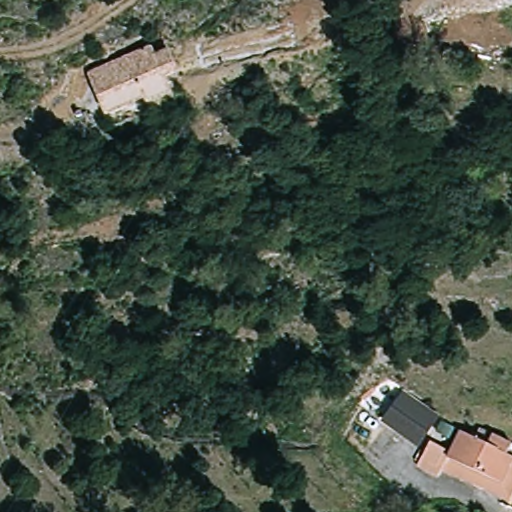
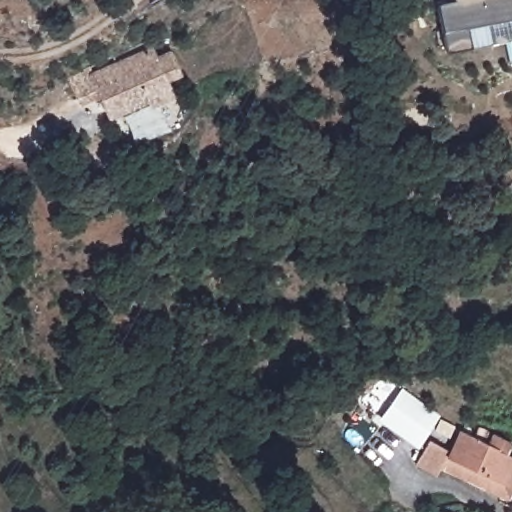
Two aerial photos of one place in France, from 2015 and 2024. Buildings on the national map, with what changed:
new [(446,51),(443,28),(438,2),(452,0),(512,0),(512,39),(469,47),(446,51)]
unchanged [(153,60),(167,54),(174,68),(178,76),(169,80),(163,82),(170,97),(147,107),(144,102),(106,120),(94,93),(87,77),(149,50),(153,60)]
unchanged [(426,402),(442,413),(421,446),(381,418),(390,407),(404,387),(426,402)]
unchanged [(432,439),(441,444),(453,450),(463,431),(473,435),(477,437),(481,430),(509,445),(507,450),(506,452),(512,456),(512,494),(508,501),(495,494),(443,467),(441,471),(439,473),(419,462),(432,439)]

